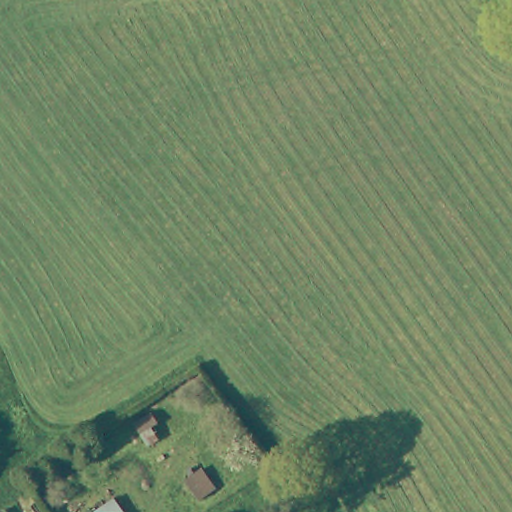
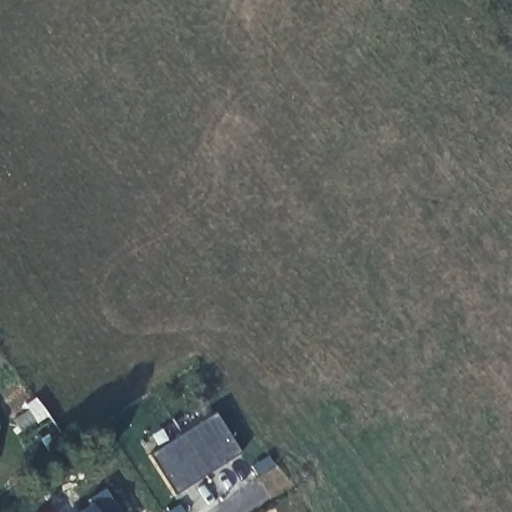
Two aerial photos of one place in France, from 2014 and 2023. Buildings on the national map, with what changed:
new [(176,497),(151,457),(216,413),(241,454),(176,497)]
demolished [(203,465),(219,484),(203,496),(189,476),(203,465)]
unchanged [(122,512),(86,512),(111,496),(122,512)]

